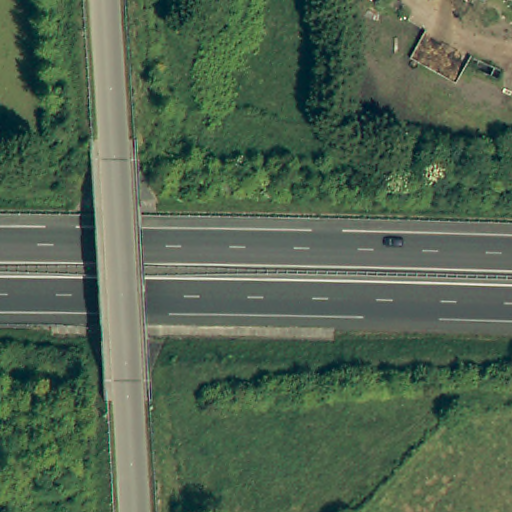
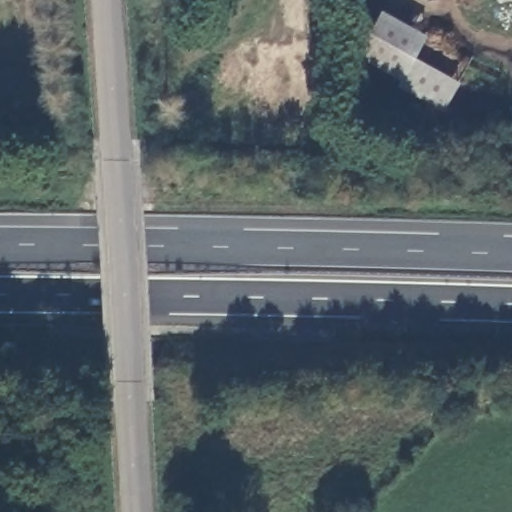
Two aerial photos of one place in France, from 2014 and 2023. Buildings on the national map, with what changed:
unchanged [(512,4),(491,0),(512,0),(512,4)]
new [(425,37),(414,59),(458,84),(442,112),(396,87),(399,80),(356,55),(380,12),(425,37)]

